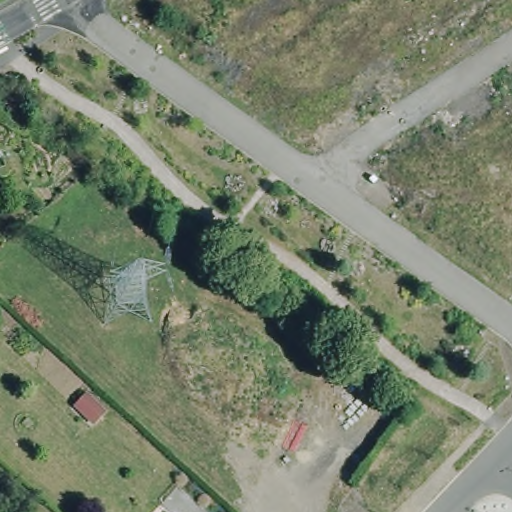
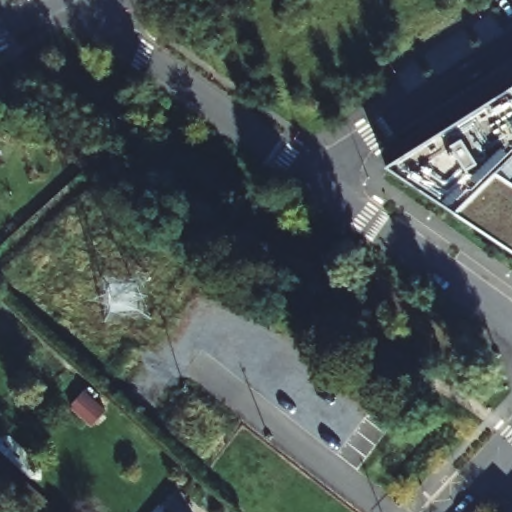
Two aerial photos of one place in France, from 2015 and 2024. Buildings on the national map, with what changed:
new [(387,167),(512,88),(512,171),(497,173),(512,183),(512,248),(458,212),(387,167)]

